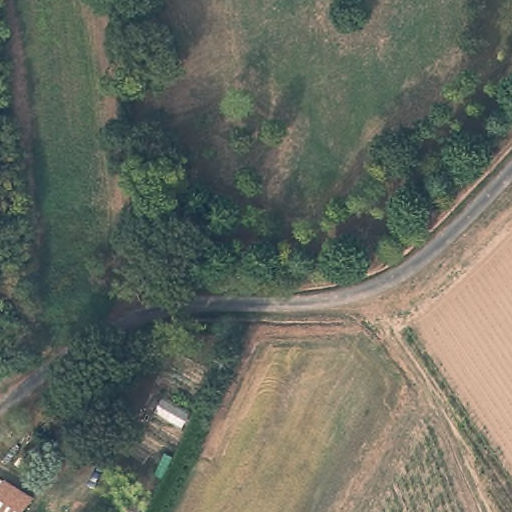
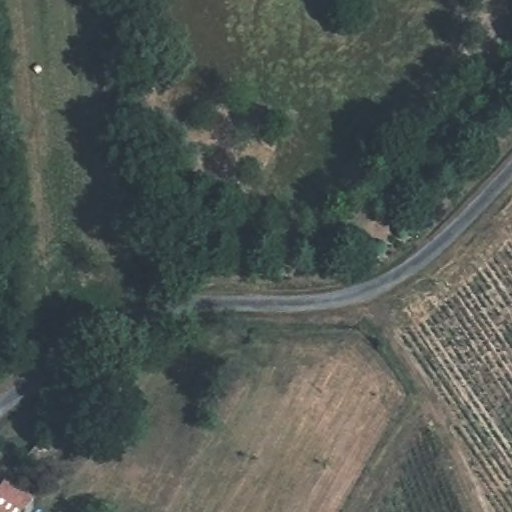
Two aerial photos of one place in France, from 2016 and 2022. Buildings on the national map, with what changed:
unchanged [(39,444),(49,451),(32,472),(22,465),(39,444)]
unchanged [(14,471),(40,488),(33,500),(26,510),(24,512),(0,512),(0,490),(2,491),(14,471)]

